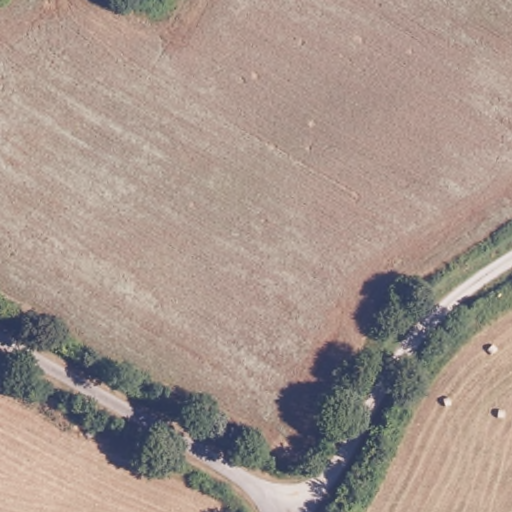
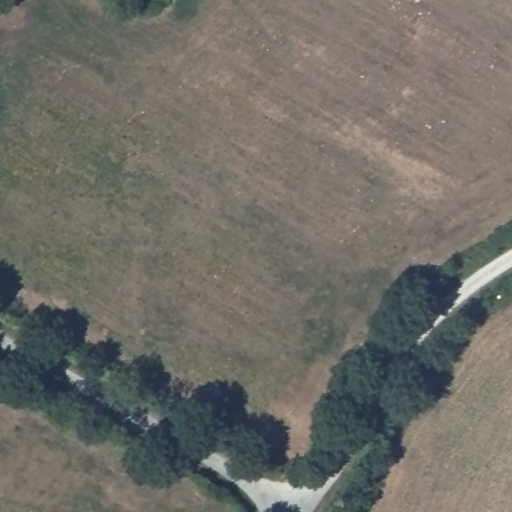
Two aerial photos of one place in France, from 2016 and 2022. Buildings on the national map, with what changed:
[]

